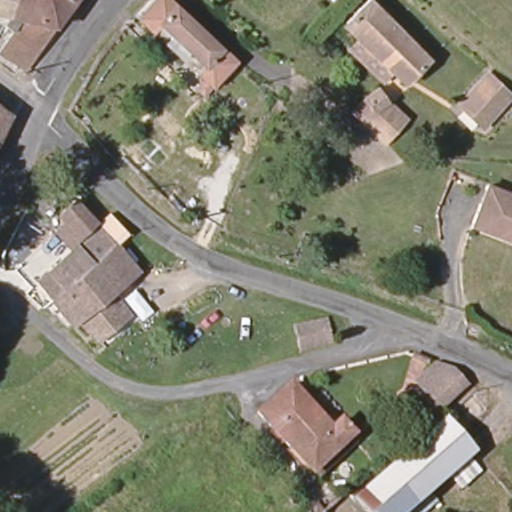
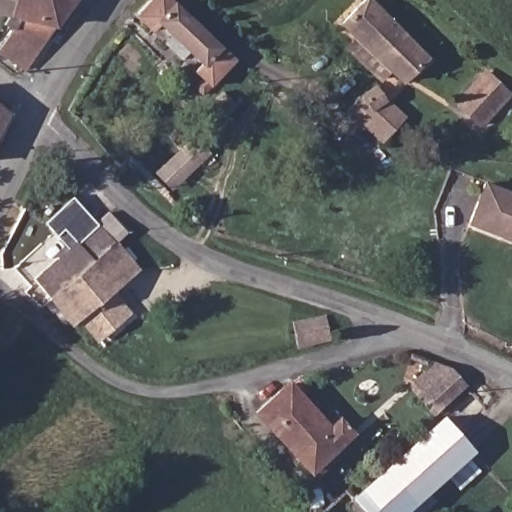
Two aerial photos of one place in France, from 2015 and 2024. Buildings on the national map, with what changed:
unchanged [(15,0),(6,20),(0,18),(0,0),(15,0)]
unchanged [(19,25),(6,20),(15,0),(78,0),(50,35),(23,77),(0,60),(0,54),(19,25)]
unchanged [(205,96),(199,89),(205,80),(198,72),(203,63),(164,25),(156,32),(142,15),(157,0),(174,0),(239,62),(205,96)]
unchanged [(357,36),(344,21),(367,0),(373,0),(401,30),(426,55),(399,81),(388,70),(379,79),(348,44),(357,36)]
unchanged [(479,126),(455,103),(485,74),(508,95),(479,126)]
unchanged [(381,135),(353,101),(366,90),(378,81),(386,95),(403,114),(381,135)]
unchanged [(11,116),(0,139),(0,105),(11,116)]
new [(171,191),(154,172),(194,136),(211,154),(171,191)]
unchanged [(488,183),(512,194),(512,240),(471,222),(488,183)]
unchanged [(69,243),(56,228),(66,219),(61,212),(76,199),(94,220),(69,243)]
unchanged [(36,281),(71,249),(111,212),(129,232),(117,242),(50,298),(36,281)]
unchanged [(117,242),(127,256),(87,290),(96,300),(79,314),(70,322),(50,298),(117,242)]
unchanged [(96,300),(87,290),(127,256),(137,270),(108,293),(125,315),(97,337),(79,314),(96,300)]
unchanged [(294,322),(320,316),(328,319),(332,342),(300,350),(294,322)]
unchanged [(439,373),(455,379),(467,393),(434,421),(421,405),(426,401),(417,390),(438,372),(439,373)]
unchanged [(290,446),(257,409),(287,383),(321,418),(290,446)]
unchanged [(315,470),(308,464),(290,446),(321,418),(333,407),(349,426),(355,433),(315,470)]
unchanged [(411,512),(358,512),(352,505),(445,426),(473,460),(411,512)]

